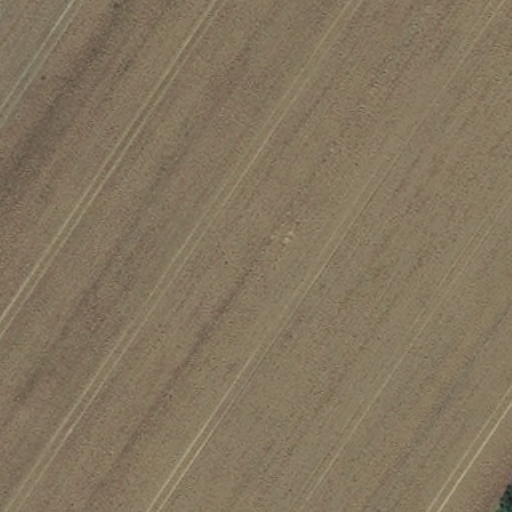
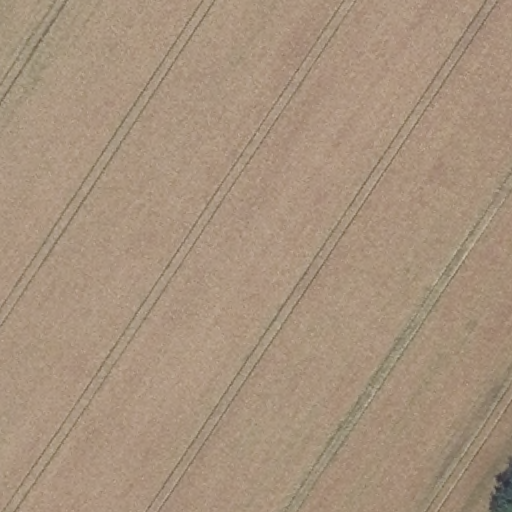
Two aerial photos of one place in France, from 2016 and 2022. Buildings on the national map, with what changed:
[]

